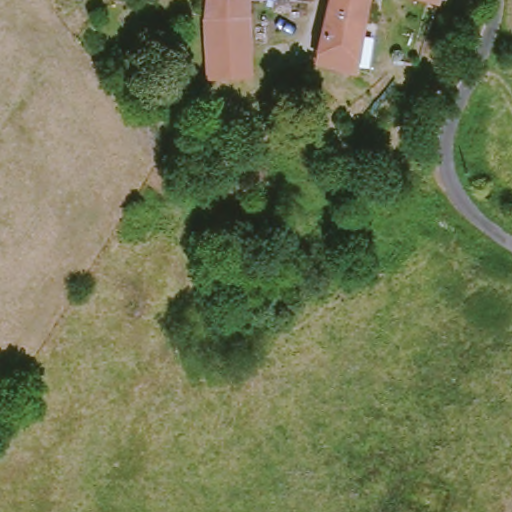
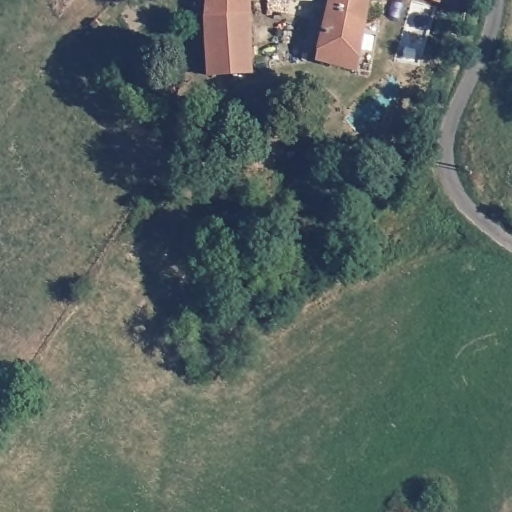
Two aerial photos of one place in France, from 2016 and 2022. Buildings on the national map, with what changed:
unchanged [(211,0),(252,0),(252,1),(252,13),(210,12),(211,0)]
unchanged [(252,0),(267,0),(267,1),(263,1),(252,1),(252,0)]
unchanged [(308,15),(293,14),(293,0),(315,0),(308,15)]
unchanged [(327,31),(336,0),(370,0),(360,56),(357,69),(328,64),(316,62),(317,57),(327,31)]
unchanged [(437,3),(426,0),(438,0),(437,3)]
unchanged [(210,12),(252,13),(252,28),(253,72),(212,76),(210,12)]

